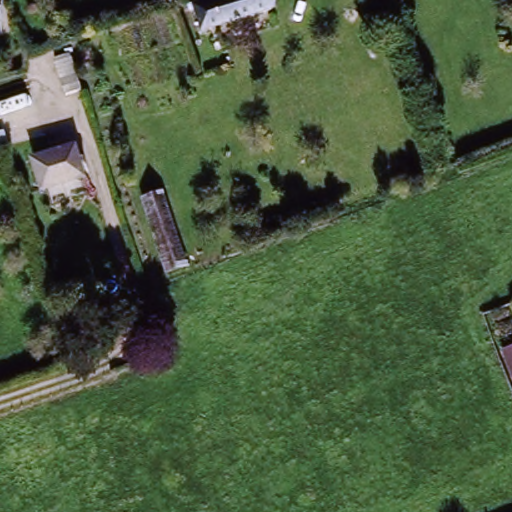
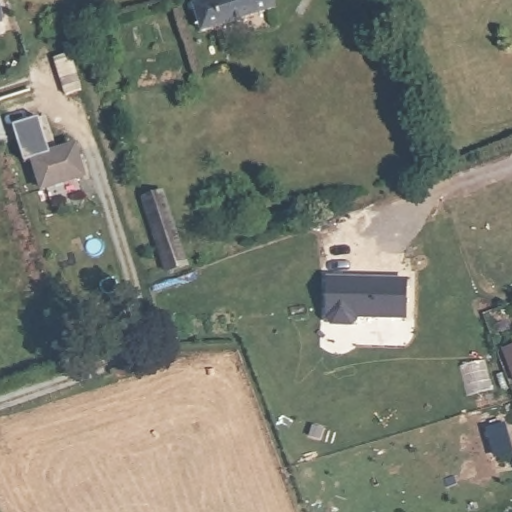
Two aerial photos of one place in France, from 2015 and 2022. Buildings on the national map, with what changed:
unchanged [(275,6),(205,25),(200,1),(206,0),(273,0),(275,6)]
unchanged [(2,27),(0,28),(0,24),(2,27)]
unchanged [(80,177),(41,189),(34,162),(72,150),(80,177)]
unchanged [(160,197),(182,266),(164,272),(141,203),(160,197)]
new [(408,279),(408,320),(360,320),(355,327),(332,327),(325,319),(327,278),(408,279)]

